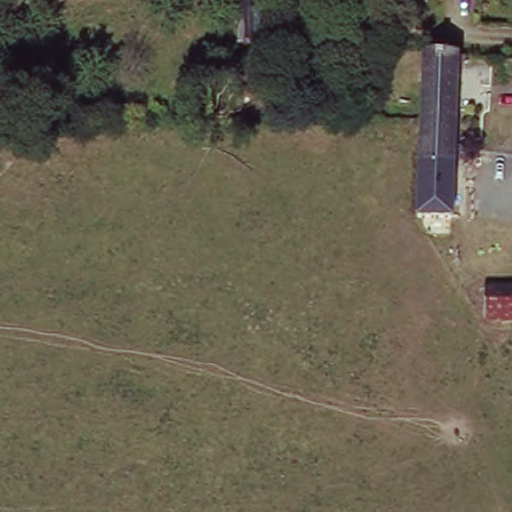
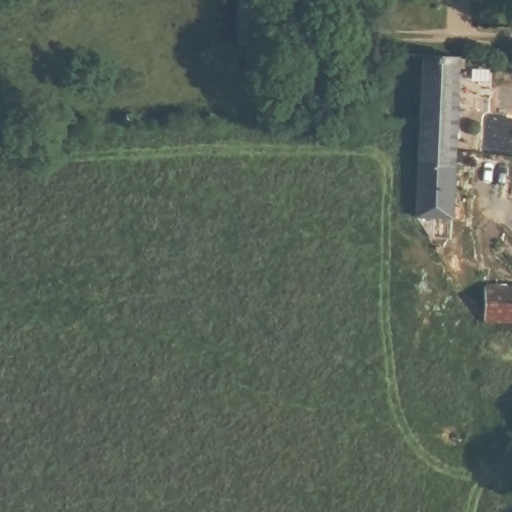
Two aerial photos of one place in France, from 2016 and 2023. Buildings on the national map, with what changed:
unchanged [(449,219),(409,216),(419,57),(458,60),(449,219)]
unchanged [(512,290),(512,325),(482,325),(483,289),(512,290)]

